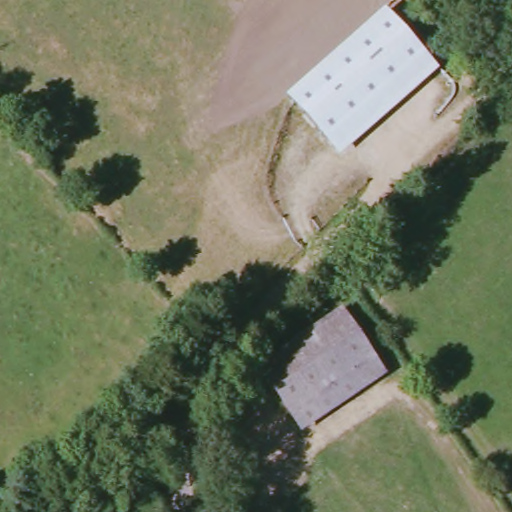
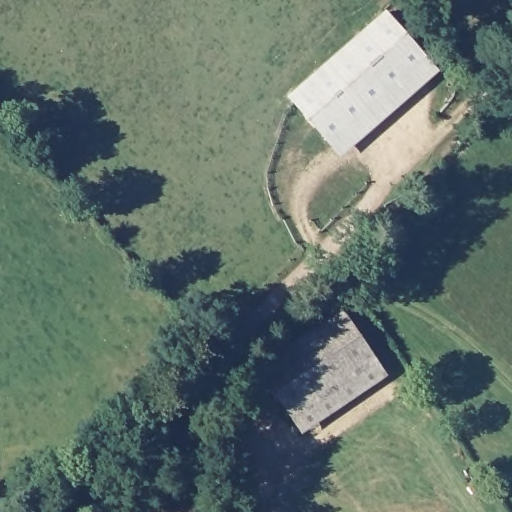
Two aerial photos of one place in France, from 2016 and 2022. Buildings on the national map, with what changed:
unchanged [(385,10),(438,71),(340,156),(286,95),(385,10)]
unchanged [(300,420),(265,370),(345,315),(380,363),(300,420)]
unchanged [(388,376),(310,433),(300,420),(380,363),(388,376)]

